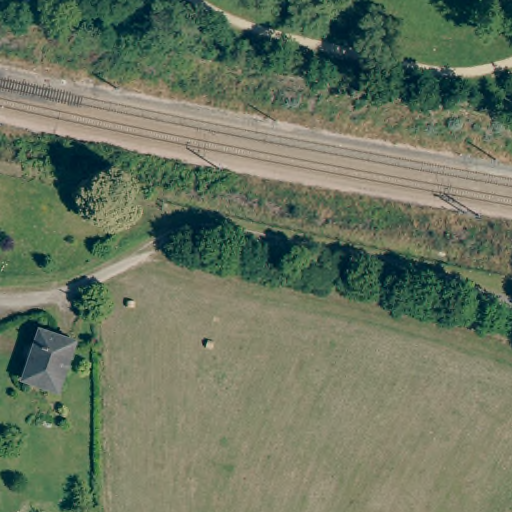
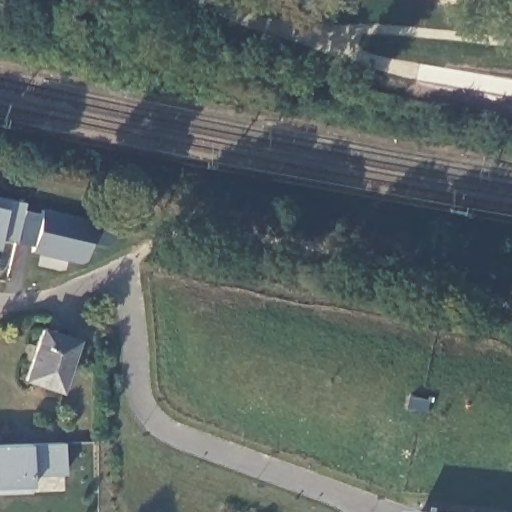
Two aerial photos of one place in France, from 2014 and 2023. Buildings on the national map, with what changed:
new [(23,209),(39,212),(40,207),(90,220),(90,224),(114,228),(112,241),(104,245),(88,243),(84,260),(76,264),(66,262),(67,259),(30,252),(32,246),(0,239),(0,196),(24,202),(23,209)]
unchanged [(55,390),(24,378),(41,329),(74,340),(55,390)]
new [(62,442),(64,473),(28,474),(29,486),(30,493),(0,494),(0,445),(27,444),(62,442)]
new [(428,512),(418,512),(419,511),(428,512)]

